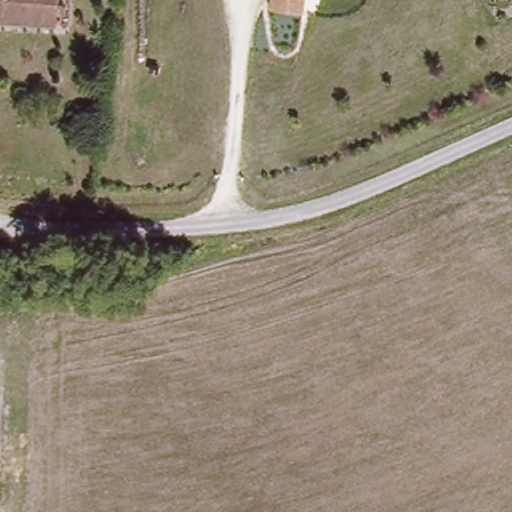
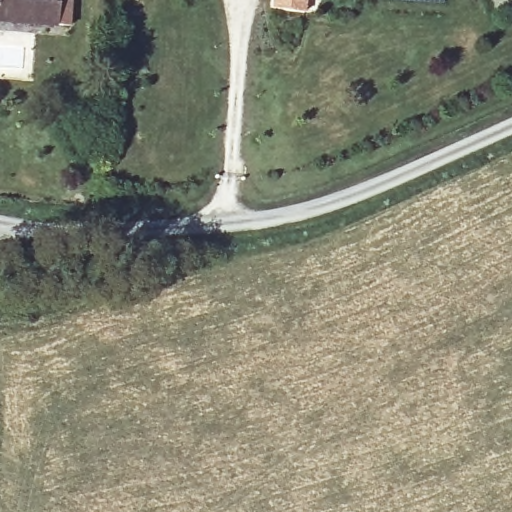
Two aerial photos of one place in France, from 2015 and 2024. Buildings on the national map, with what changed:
unchanged [(0,25),(0,0),(50,0),(49,26),(0,25)]

